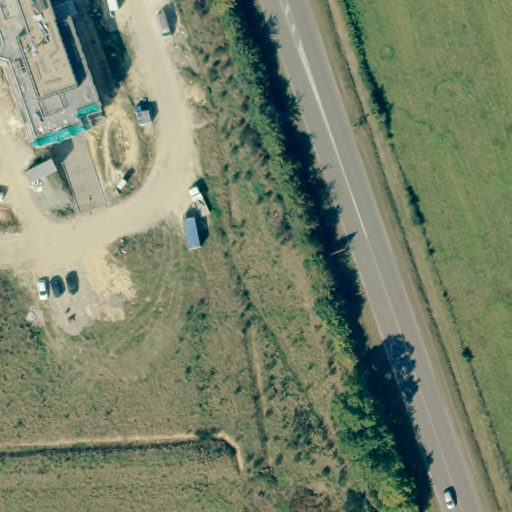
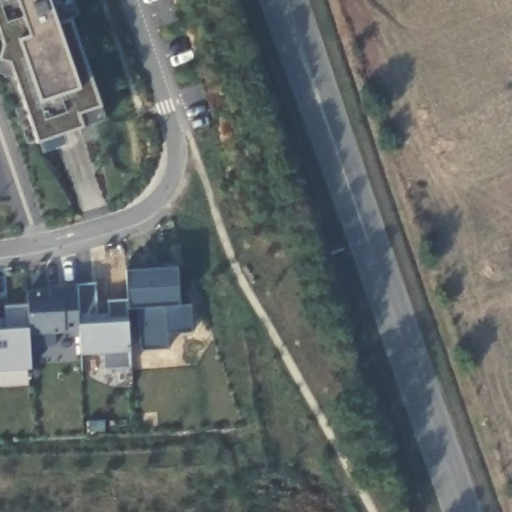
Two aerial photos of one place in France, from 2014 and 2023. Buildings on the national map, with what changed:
unchanged [(13,61),(2,58),(6,44),(0,27),(0,0),(48,0),(57,24),(70,19),(100,106),(78,113),(83,126),(38,140),(13,61)]
new [(138,308),(127,308),(126,300),(126,270),(177,267),(179,305),(190,304),(192,331),(167,332),(168,347),(142,349),(138,308)]
new [(27,291),(78,289),(77,283),(95,282),(96,313),(108,313),(107,300),(126,300),(128,322),(130,352),(129,368),(104,369),(107,353),(79,354),(79,333),(56,334),(57,346),(31,348),(27,291)]
new [(30,328),(31,348),(33,369),(0,369),(0,318),(5,318),(5,307),(28,306),(30,328)]

